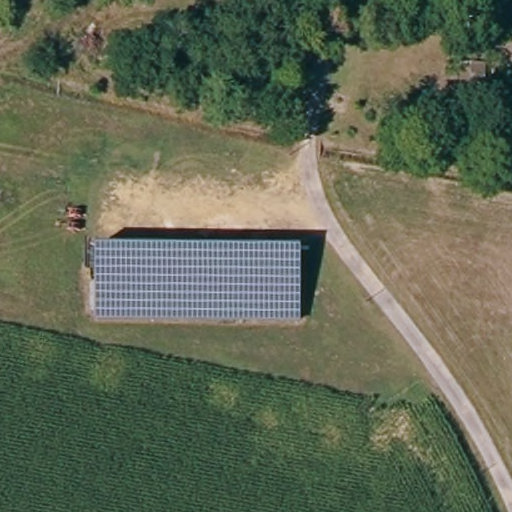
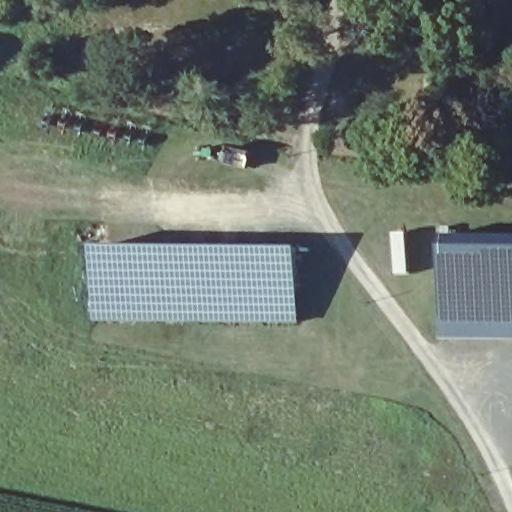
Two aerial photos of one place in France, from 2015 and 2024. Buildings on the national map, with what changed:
new [(512,236),(512,340),(443,340),(443,236),(512,236)]
unchanged [(303,324),(102,322),(102,247),(304,250),(303,324)]

